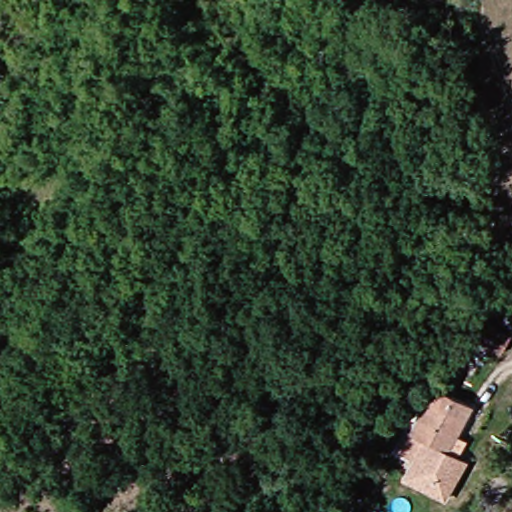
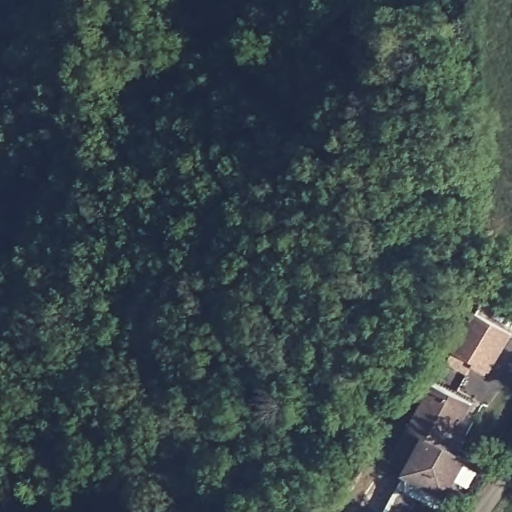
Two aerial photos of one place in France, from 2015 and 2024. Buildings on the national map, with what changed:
new [(492,375),(475,365),(469,377),(448,365),(477,315),(512,336),(512,341),(492,375)]
unchanged [(416,460),(401,451),(414,428),(437,383),(473,402),(450,446),(449,448),(468,458),(448,497),(427,486),(407,476),(416,460)]

